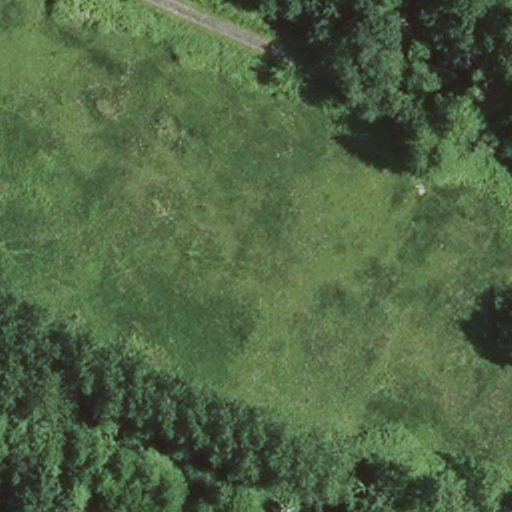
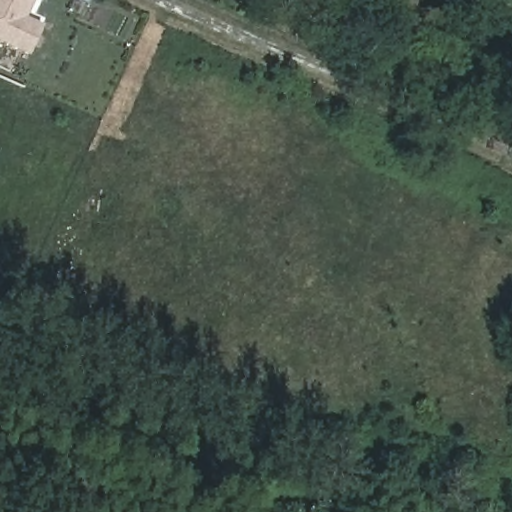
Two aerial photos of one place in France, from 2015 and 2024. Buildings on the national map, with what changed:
new [(27,20),(44,28),(32,56),(0,41),(0,0),(36,0),(27,20)]

